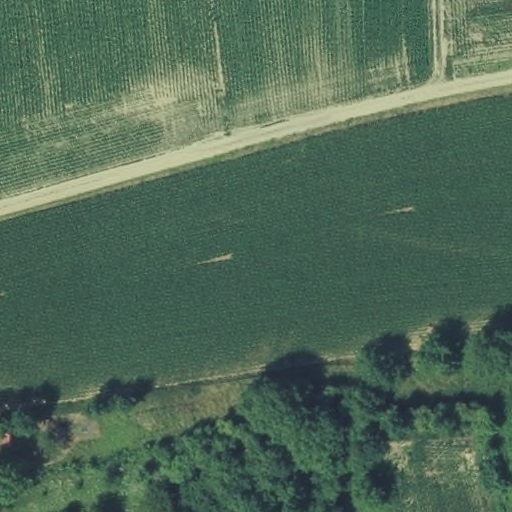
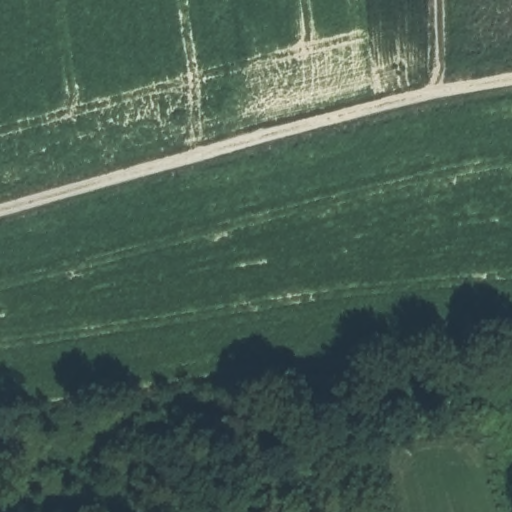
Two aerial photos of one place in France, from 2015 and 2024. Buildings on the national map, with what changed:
unchanged [(336,388),(341,412),(309,420),(306,395),(336,388)]

